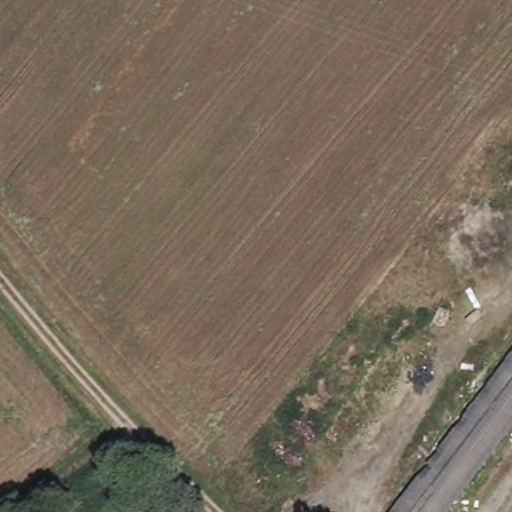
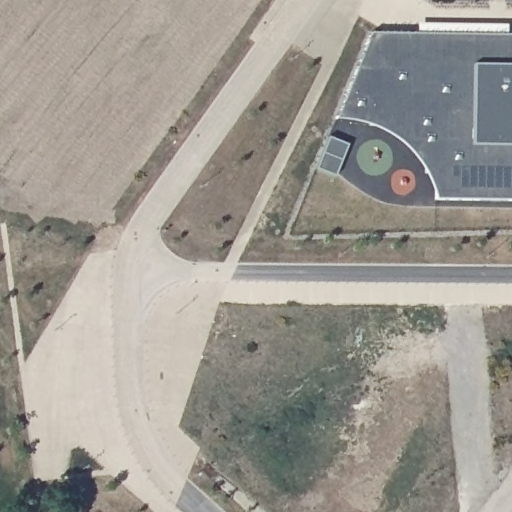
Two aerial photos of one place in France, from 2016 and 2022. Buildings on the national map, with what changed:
new [(414,158),(408,152),(392,139),(377,130),(369,127),(370,94),(335,94),(344,33),(512,36),(512,201),(435,200),(430,184),(426,178),(425,174),(414,158)]
new [(331,121),(335,94),(370,94),(369,127),(355,123),(337,121),(331,121)]
new [(328,138),(347,145),(334,178),(315,170),(328,138)]
demolished [(443,512),(389,512),(512,349),(512,420),(443,512)]

